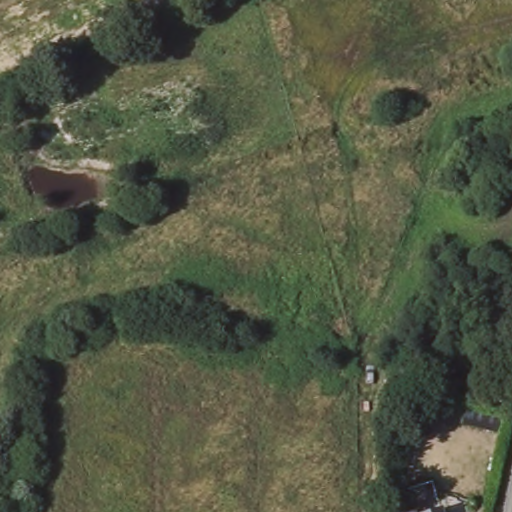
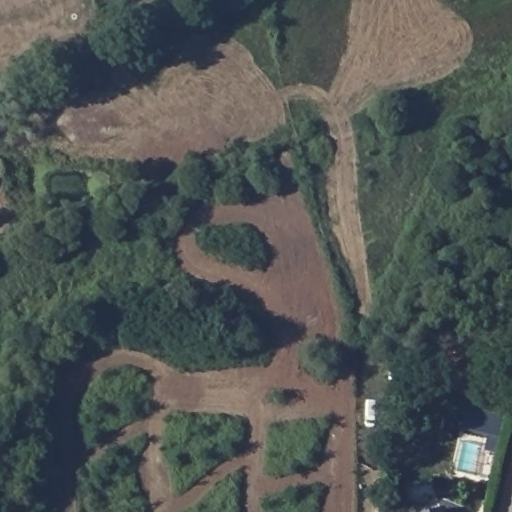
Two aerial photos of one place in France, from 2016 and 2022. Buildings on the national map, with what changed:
unchanged [(434,512),(441,510),(441,512),(434,512)]

